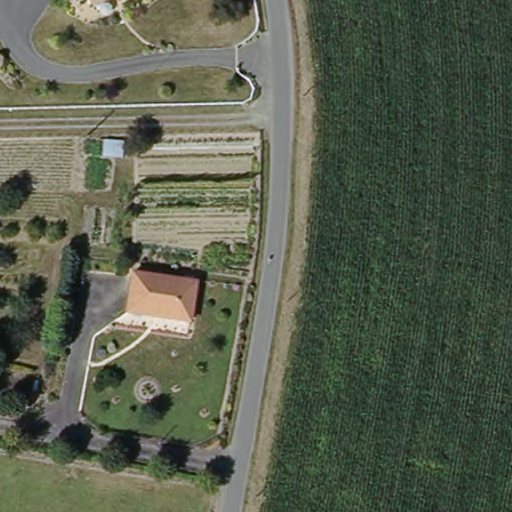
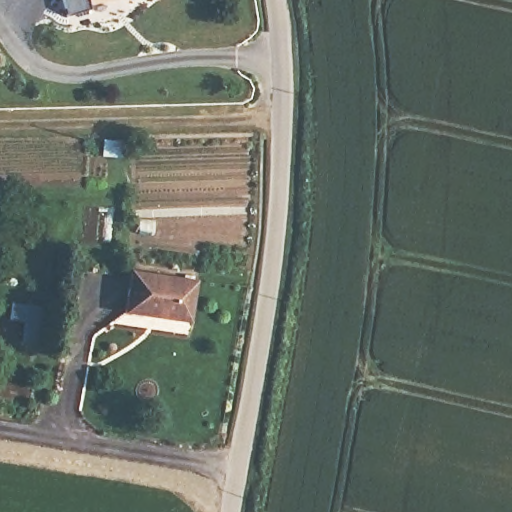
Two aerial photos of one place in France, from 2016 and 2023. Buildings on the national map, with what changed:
unchanged [(93,1),(93,0),(97,0),(93,1)]
unchanged [(189,319),(128,306),(132,270),(197,282),(189,319)]

